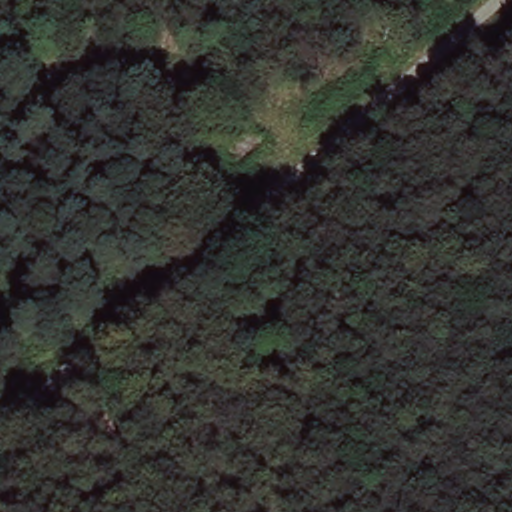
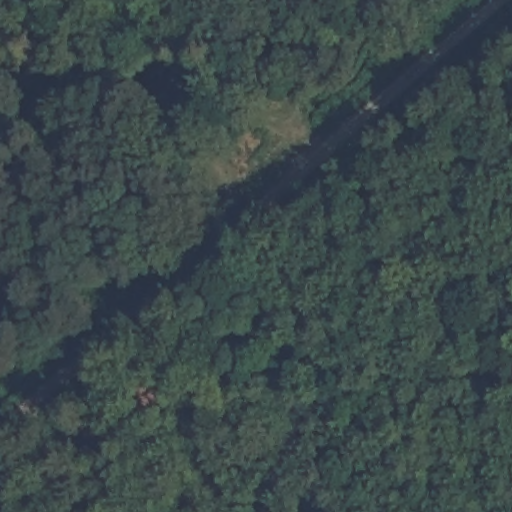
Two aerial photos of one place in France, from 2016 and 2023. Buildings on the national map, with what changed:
unchanged [(237,170),(222,151),(251,126),(263,146),(237,170)]

